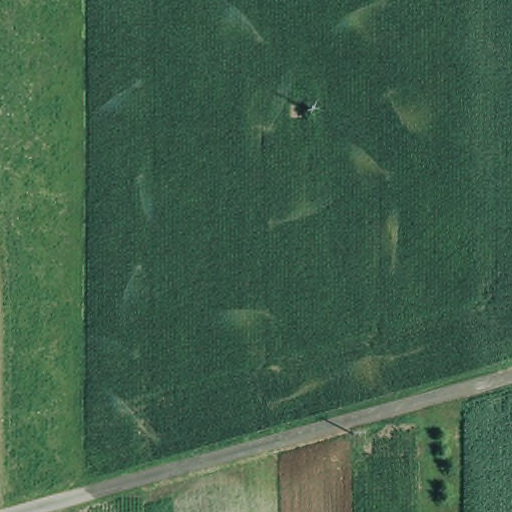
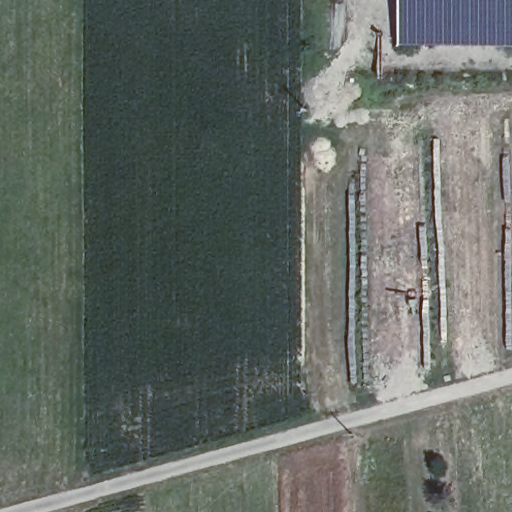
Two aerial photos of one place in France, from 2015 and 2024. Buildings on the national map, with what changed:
new [(395,48),(396,0),(512,0),(512,49),(395,48)]

